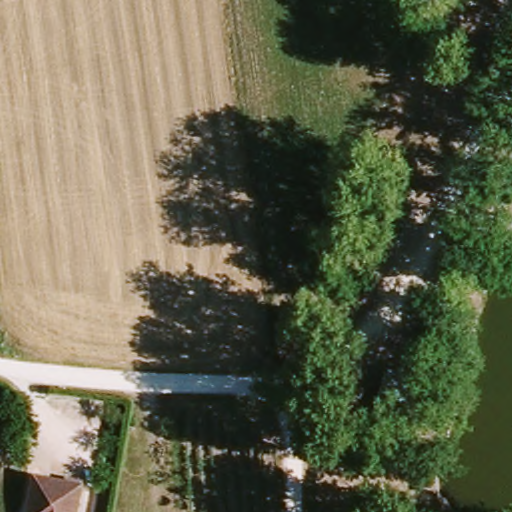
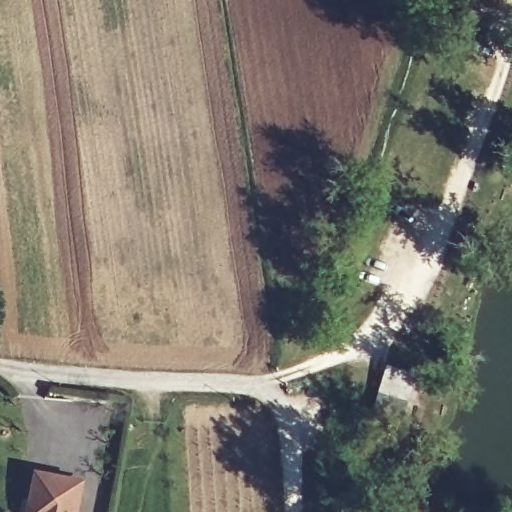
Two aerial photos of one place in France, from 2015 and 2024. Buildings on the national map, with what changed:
unchanged [(28,512),(28,511),(23,509),(30,474),(83,483),(78,512),(28,512)]

